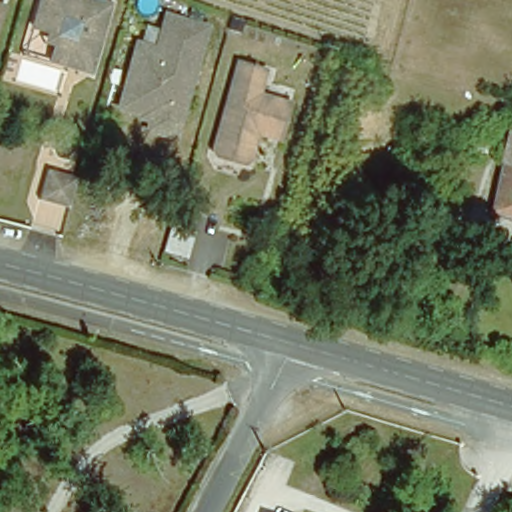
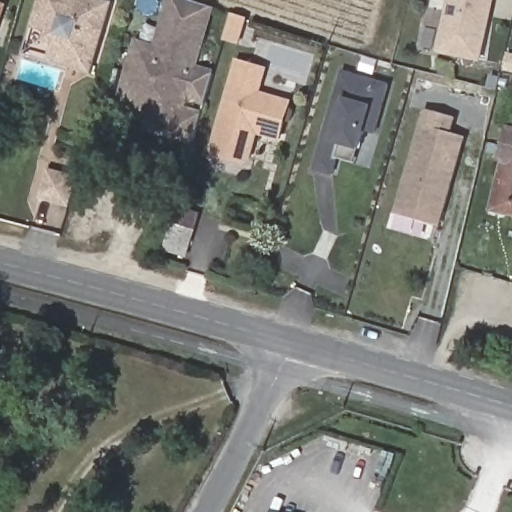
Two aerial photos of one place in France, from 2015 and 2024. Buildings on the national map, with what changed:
unchanged [(54,56),(58,38),(46,35),(49,23),(49,22),(48,22),(34,18),(39,0),(113,0),(94,68),(77,63),(70,61),(54,56)]
new [(436,54),(448,0),(495,0),(482,63),(436,54)]
unchanged [(0,15),(0,4),(3,5),(0,15)]
unchanged [(142,113),(120,107),(129,78),(139,42),(158,48),(167,14),(208,26),(196,68),(189,72),(185,89),(188,95),(176,136),(149,128),(151,120),(140,117),(142,113)]
unchanged [(272,140),(260,136),(251,163),(245,167),(218,159),(215,153),(240,65),(252,68),(267,73),(263,87),(261,97),(292,106),(284,136),(282,143),(272,140)]
new [(314,171),(341,71),(388,84),(375,135),(366,133),(360,154),(342,149),(334,177),(314,171)]
new [(395,215),(425,110),(456,119),(453,134),(466,138),(441,229),(395,215)]
unchanged [(492,205),(511,124),(512,124),(512,209),(492,205)]
unchanged [(35,195),(44,165),(75,174),(66,204),(35,195)]
unchanged [(172,223),(194,230),(186,256),(165,250),(172,223)]

